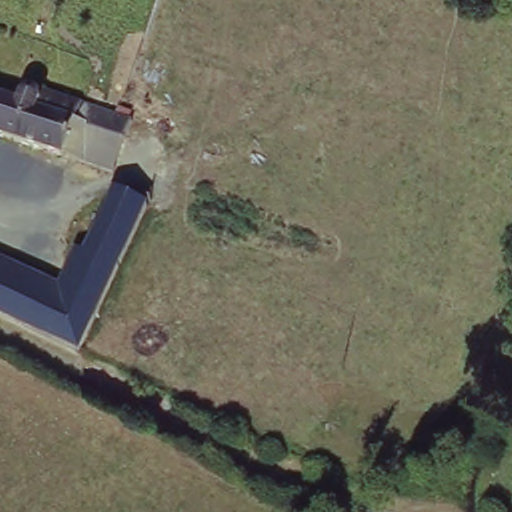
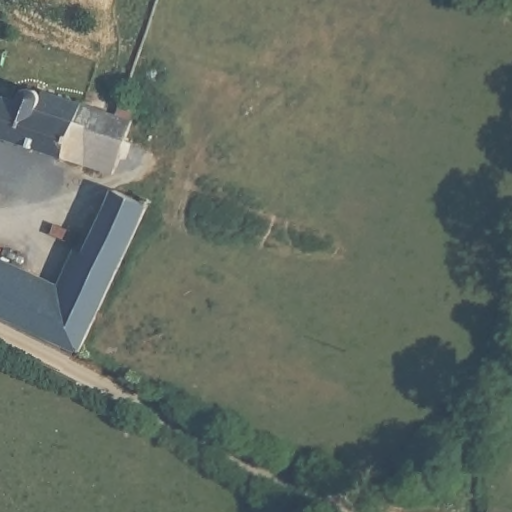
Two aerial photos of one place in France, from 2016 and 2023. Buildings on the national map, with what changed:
unchanged [(123,134),(112,169),(61,155),(61,152),(0,133),(0,92),(10,95),(13,88),(17,82),(21,80),(25,81),(29,82),(32,85),(34,88),(36,94),(38,95),(40,87),(119,117),(127,120),(145,126),(140,140),(123,134)]
unchanged [(0,311),(0,270),(67,300),(82,256),(108,182),(146,196),(90,353),(75,345),(0,311)]
unchanged [(0,270),(0,255),(59,280),(69,252),(82,256),(67,300),(0,270)]

